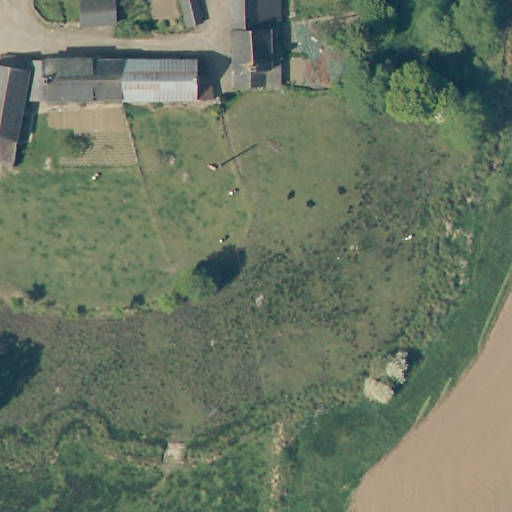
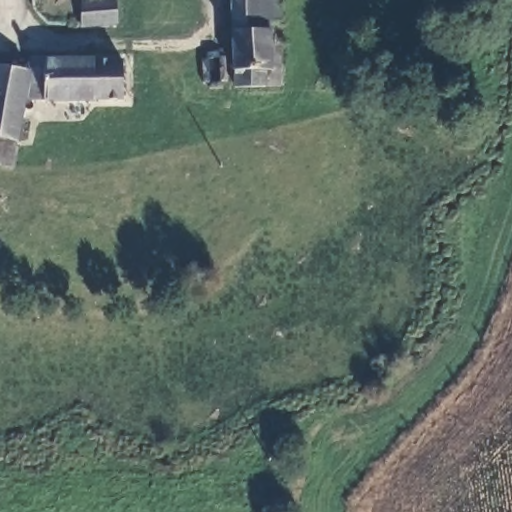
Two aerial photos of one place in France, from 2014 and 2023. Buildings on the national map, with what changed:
unchanged [(82,1),(88,0),(116,0),(116,24),(81,27),(82,1)]
unchanged [(182,0),(198,0),(203,23),(187,26),(182,0)]
unchanged [(231,0),(281,0),(281,20),(270,20),(270,30),(232,30),(231,0)]
unchanged [(280,86),(235,87),(233,70),(232,30),(270,30),(271,57),(279,57),(280,86)]
unchanged [(0,163),(0,66),(2,66),(3,56),(33,58),(32,61),(123,60),(123,100),(24,100),(17,142),(13,166),(0,163)]
demolished [(197,78),(210,75),(211,82),(214,99),(123,100),(123,60),(197,60),(197,78)]

